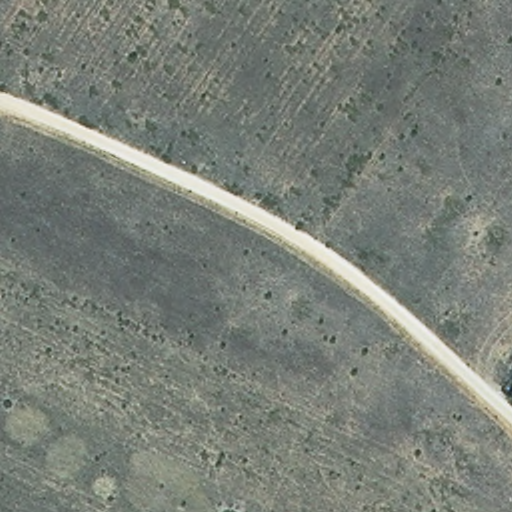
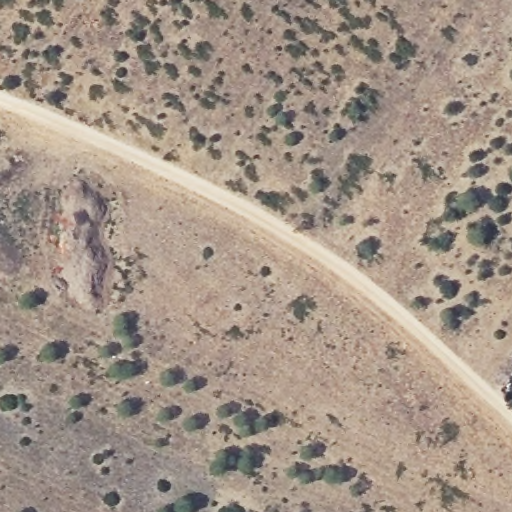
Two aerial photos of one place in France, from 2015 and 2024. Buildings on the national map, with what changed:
unchanged [(509,388),(512,384),(512,390),(509,388)]

